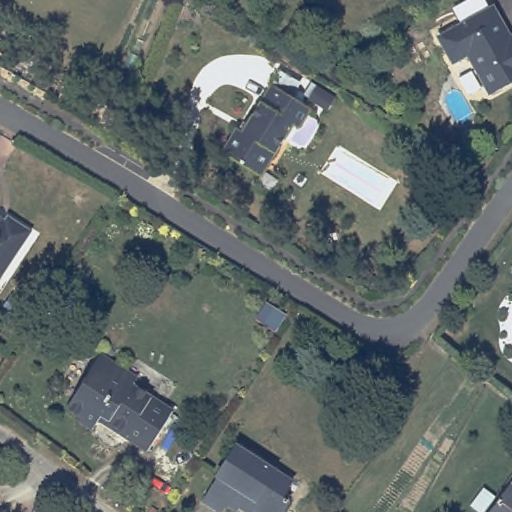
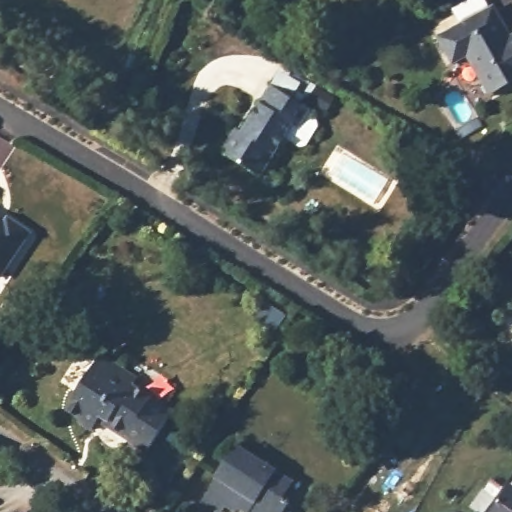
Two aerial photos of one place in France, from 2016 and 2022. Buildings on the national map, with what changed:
unchanged [(491,100),(470,63),(454,70),(439,44),(463,30),(455,15),(482,1),(490,16),(500,11),(512,33),(512,89),(491,100)]
unchanged [(241,132),(270,85),(310,109),(306,115),(315,120),(316,125),(305,144),(300,144),(284,135),(260,175),(221,151),(235,128),(241,132)]
unchanged [(481,173),(469,192),(457,185),(469,166),(481,173)]
unchanged [(8,220),(29,234),(0,278),(0,222),(5,225),(8,220)]
unchanged [(267,306),(284,318),(274,330),(258,319),(267,306)]
unchanged [(104,360),(142,384),(137,392),(175,417),(150,456),(102,425),(95,436),(81,427),(84,423),(69,414),(104,360)]
unchanged [(290,481),(279,498),(287,503),(281,512),(246,512),(237,506),(234,509),(224,504),(219,512),(203,502),(217,480),(215,478),(235,447),(290,481)]
unchanged [(512,490),(512,512),(496,512),(512,490)]

